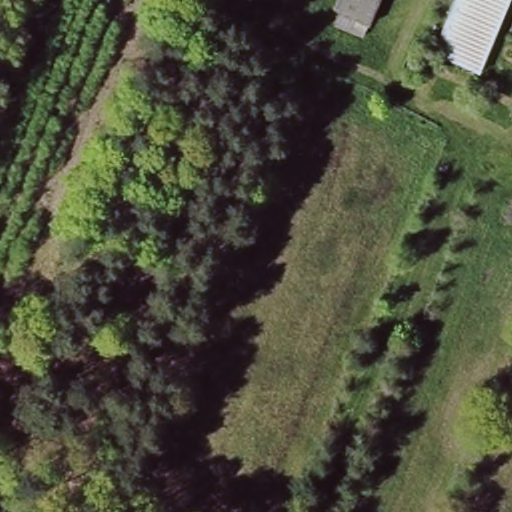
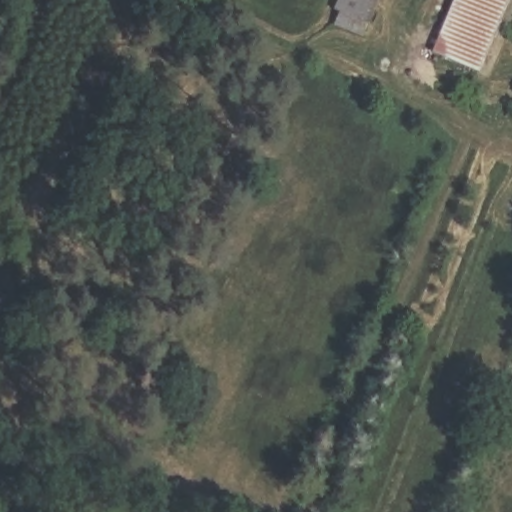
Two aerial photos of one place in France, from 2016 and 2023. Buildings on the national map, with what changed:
unchanged [(357,24),(349,35),(330,29),(339,0),(378,0),(368,28),(357,24)]
unchanged [(432,54),(456,0),(511,0),(483,76),(432,54)]

